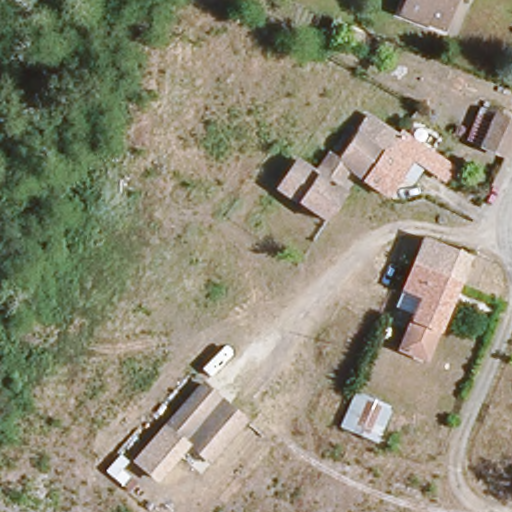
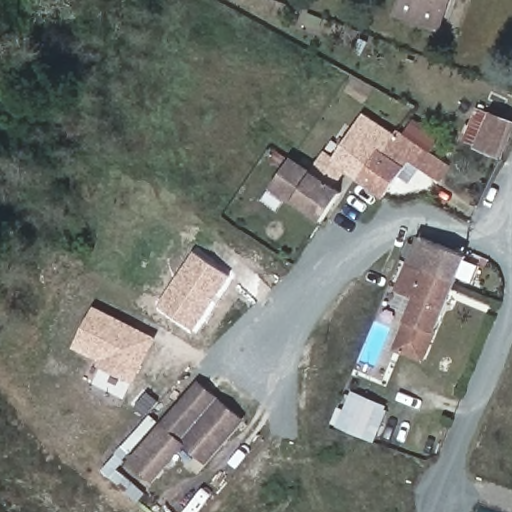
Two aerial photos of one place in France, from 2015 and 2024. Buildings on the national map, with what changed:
unchanged [(438,26),(399,15),(405,0),(447,0),(438,26)]
unchanged [(477,145),(480,139),(464,133),(480,91),(501,98),(496,114),(509,119),(495,153),(477,145)]
unchanged [(307,166),(317,154),(325,158),(327,154),(341,134),(346,137),(354,125),(373,138),(373,136),(376,133),(384,136),(432,160),(427,171),(401,158),(380,195),(366,186),(361,182),(356,179),(344,170),(333,183),(329,188),(337,194),(334,197),(320,217),(272,182),(291,157),(307,166)]
unchanged [(414,237),(460,254),(451,279),(432,328),(425,347),(419,362),(392,351),(397,337),(404,318),(413,295),(395,288),(405,262),(414,237)]
new [(231,275),(194,329),(159,306),(195,251),(231,275)]
new [(98,361),(72,348),(94,305),(157,337),(133,384),(114,374),(98,361)]
unchanged [(135,458),(194,379),(236,409),(203,454),(196,449),(186,463),(172,452),(156,474),(135,458)]
unchanged [(383,403),(385,408),(372,441),(335,425),(351,389),(383,403)]

